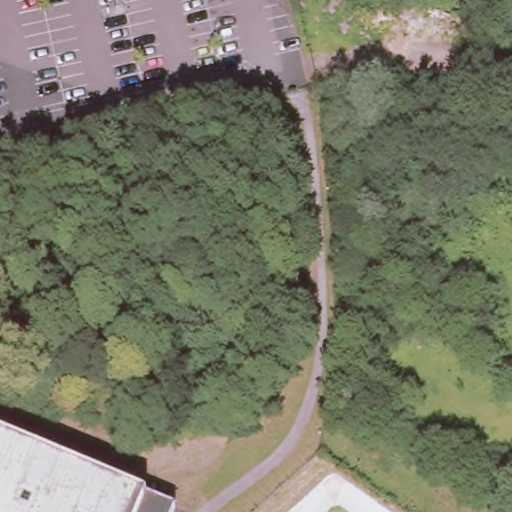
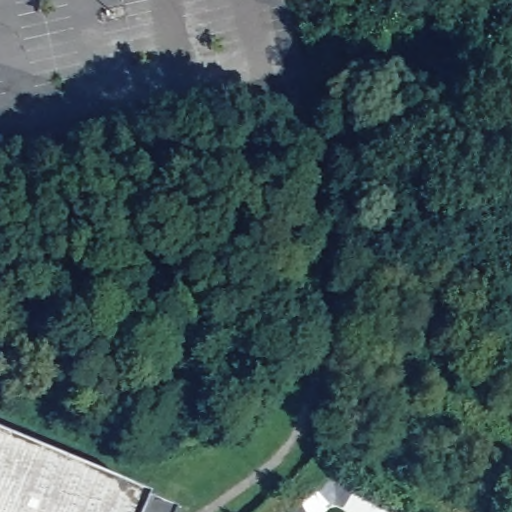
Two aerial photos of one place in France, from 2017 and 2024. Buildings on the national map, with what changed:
unchanged [(177,508),(175,512),(0,512),(0,435),(177,508)]

